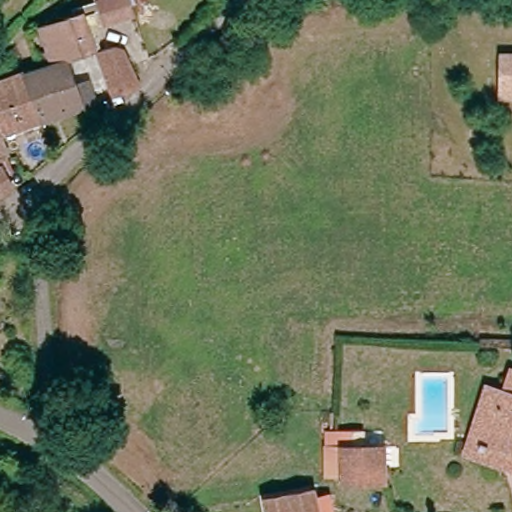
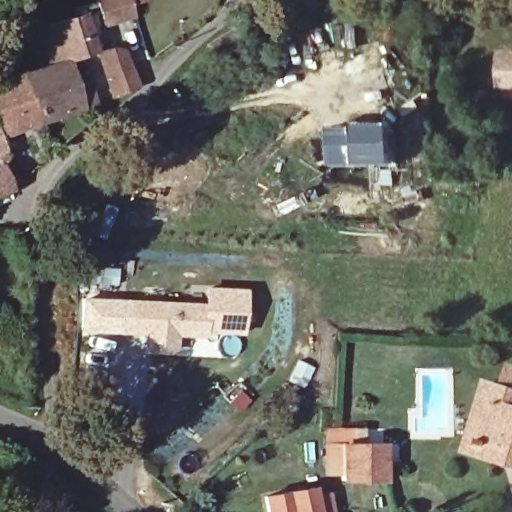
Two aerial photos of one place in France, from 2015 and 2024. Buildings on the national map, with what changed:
unchanged [(73,19),(70,11),(96,3),(104,0),(127,0),(133,19),(104,28),(103,26),(91,30),(100,52),(95,54),(66,62),(51,66),(38,29),(73,19)]
unchanged [(257,54),(230,70),(217,49),(245,32),(257,54)]
unchanged [(111,101),(95,54),(100,52),(112,48),(121,51),(127,66),(129,66),(139,90),(111,101)]
unchanged [(510,58),(512,58),(512,99),(509,99),(510,58)]
unchanged [(22,75),(37,71),(51,66),(66,62),(74,86),(86,81),(95,106),(38,125),(22,75)]
unchanged [(217,81),(212,74),(220,68),(225,75),(217,81)]
unchanged [(22,75),(38,125),(1,137),(9,156),(0,160),(0,84),(22,75)]
new [(356,126),(358,169),(328,169),(326,128),(356,126)]
new [(393,126),(391,186),(376,186),(377,168),(358,169),(356,126),(393,126)]
unchanged [(11,190),(0,196),(0,165),(11,190)]
new [(75,265),(119,267),(117,285),(74,283),(75,265)]
new [(132,331),(134,301),(207,306),(209,289),(247,291),(245,333),(207,330),(207,335),(178,334),(177,351),(152,350),(147,349),(149,332),(132,331)]
new [(132,331),(77,329),(78,298),(134,301),(132,331)]
unchanged [(467,436),(484,388),(500,393),(508,369),(512,370),(512,469),(462,453),(467,436)]
unchanged [(344,477),(325,477),(326,445),(327,445),(327,430),(333,430),(346,430),(345,445),(385,445),(385,481),(344,482),(344,477)]
unchanged [(315,485),(316,494),(330,491),(334,512),(271,512),(268,493),(315,485)]

